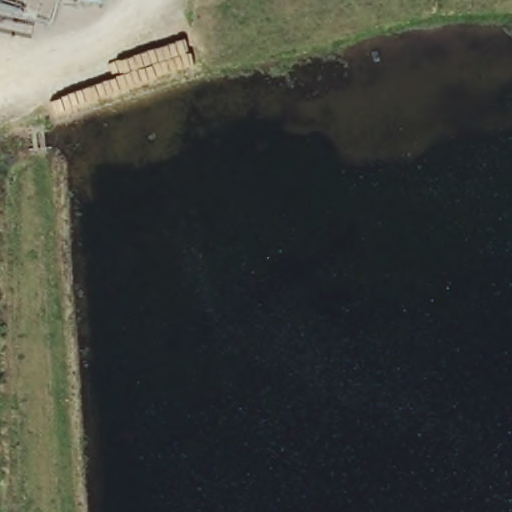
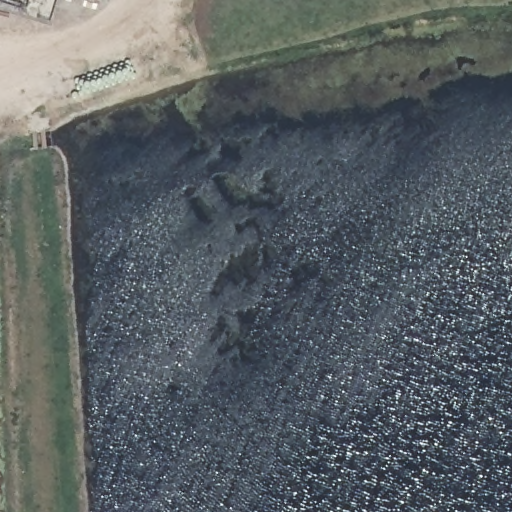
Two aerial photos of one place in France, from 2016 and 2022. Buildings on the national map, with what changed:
unchanged [(94,0),(107,0),(105,4),(94,0)]

